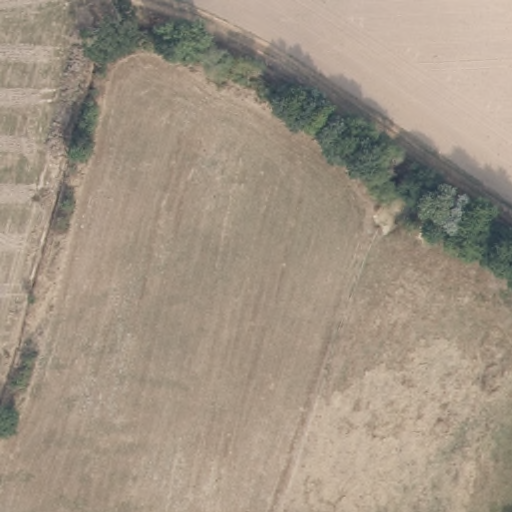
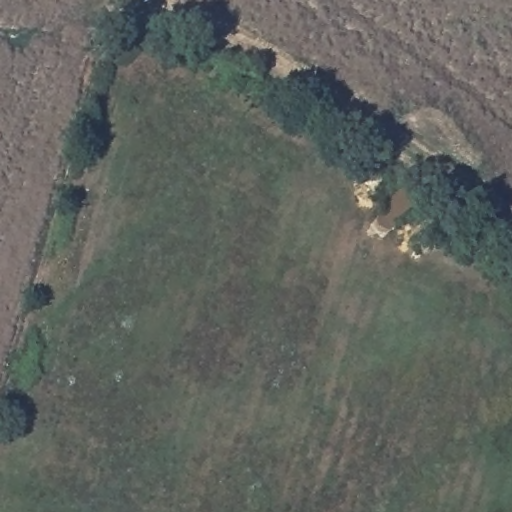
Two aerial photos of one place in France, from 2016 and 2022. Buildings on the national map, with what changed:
[]

